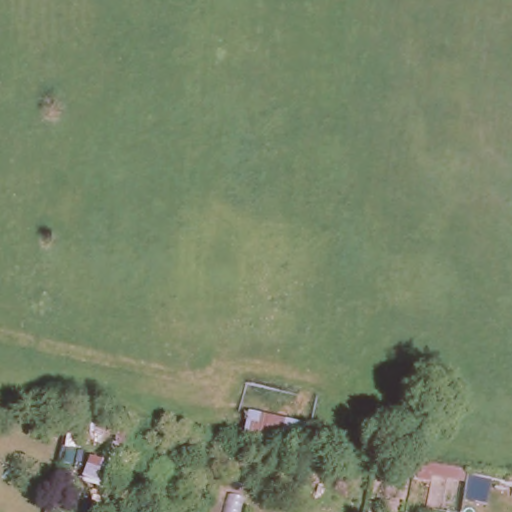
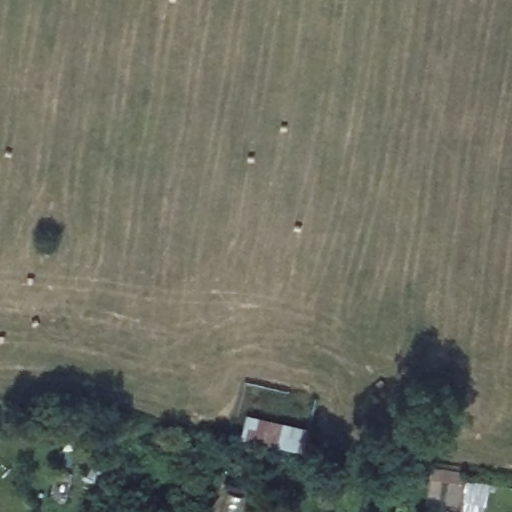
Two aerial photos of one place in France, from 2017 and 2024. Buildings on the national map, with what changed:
unchanged [(308,450),(245,442),(251,409),(310,422),(308,450)]
unchanged [(428,473),(428,477),(415,474),(417,457),(453,466),(466,468),(465,481),(452,478),(428,473)]

